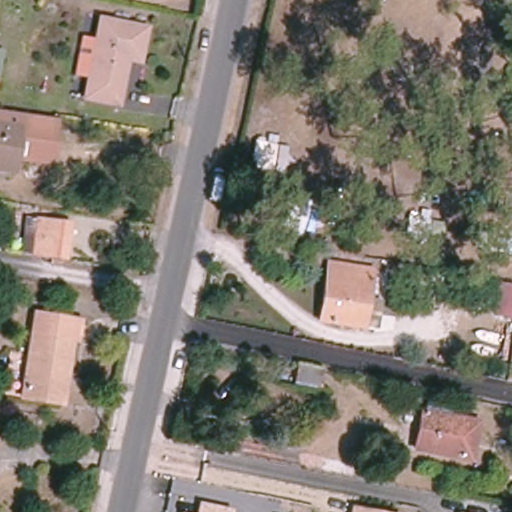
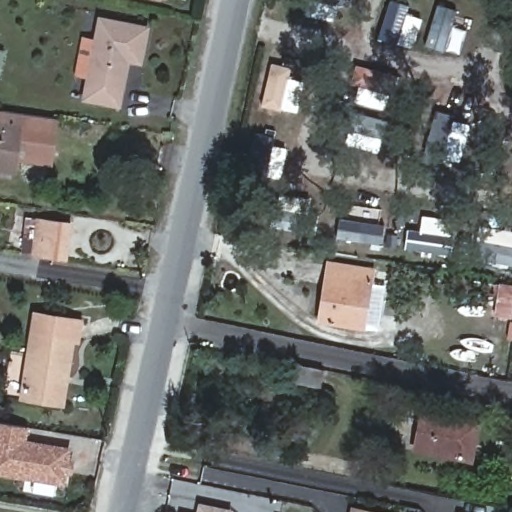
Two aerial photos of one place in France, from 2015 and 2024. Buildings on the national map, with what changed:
unchanged [(85,31),(99,34),(102,14),(149,23),(142,56),(130,55),(121,100),(87,94),(91,74),(77,70),(85,31)]
unchanged [(0,56),(0,48),(2,48),(0,56)]
unchanged [(10,170),(0,169),(0,110),(52,117),(52,118),(49,143),(46,162),(12,157),(10,170)]
unchanged [(72,224),(67,259),(24,254),(27,218),(72,224)]
unchanged [(366,327),(322,320),(332,263),(375,270),(366,327)]
unchanged [(64,403),(7,394),(15,351),(32,354),(38,314),(82,321),(79,340),(74,340),(64,403)]
unchanged [(299,365),(326,370),(323,386),(296,380),(299,365)]
unchanged [(417,449),(425,411),(480,422),(478,429),(468,427),(462,458),(417,449)]
new [(0,421),(31,426),(29,439),(72,446),(71,457),(76,458),(73,473),(67,472),(66,484),(0,473),(0,421)]
unchanged [(353,500),(396,507),(395,512),(351,512),(353,500)]
unchanged [(197,502),(232,509),(231,512),(195,512),(197,502)]

